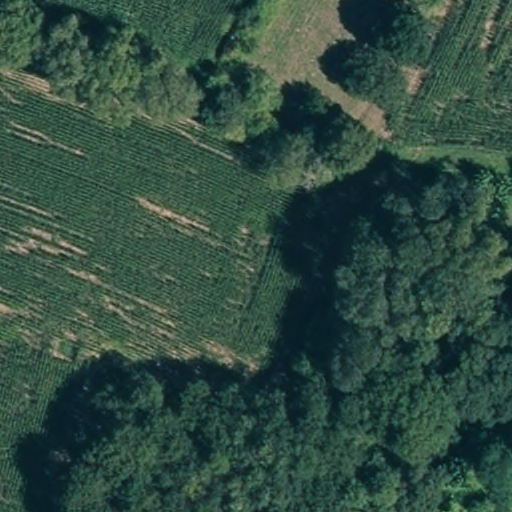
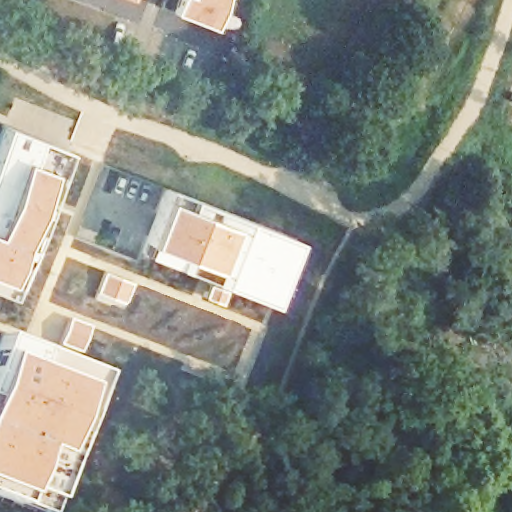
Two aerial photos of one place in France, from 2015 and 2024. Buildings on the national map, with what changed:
new [(212,22),(160,4),(162,0),(221,0),(212,22)]
new [(68,148),(13,293),(0,289),(0,140),(6,122),(68,148)]
new [(294,235),(274,300),(144,252),(168,187),(294,235)]
new [(105,372),(52,511),(0,492),(0,346),(6,331),(105,372)]

